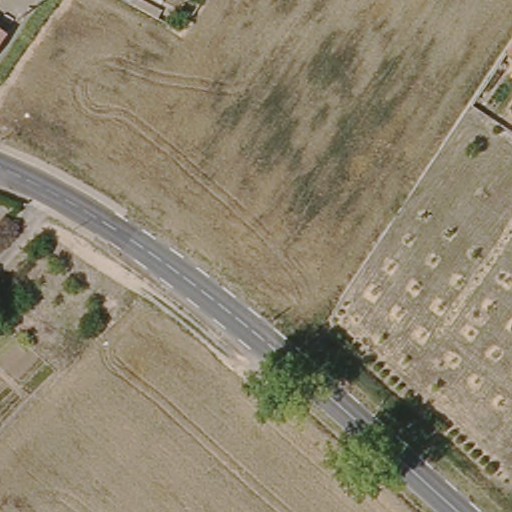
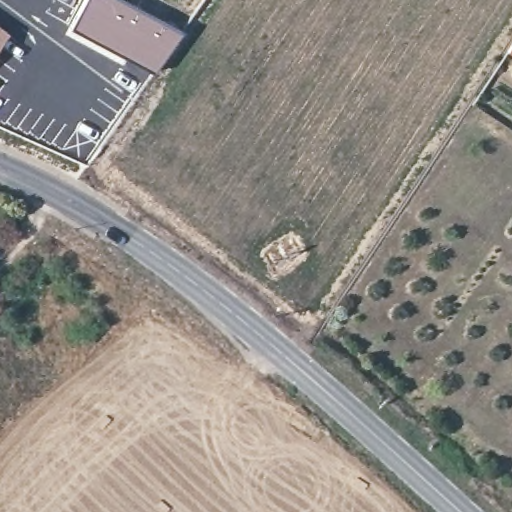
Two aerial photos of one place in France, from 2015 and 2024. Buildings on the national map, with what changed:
new [(152,71),(70,27),(84,0),(125,0),(182,29),(152,71)]
unchanged [(6,28),(0,36),(0,24),(6,28)]
unchanged [(512,51),(512,55),(510,54),(512,51)]

